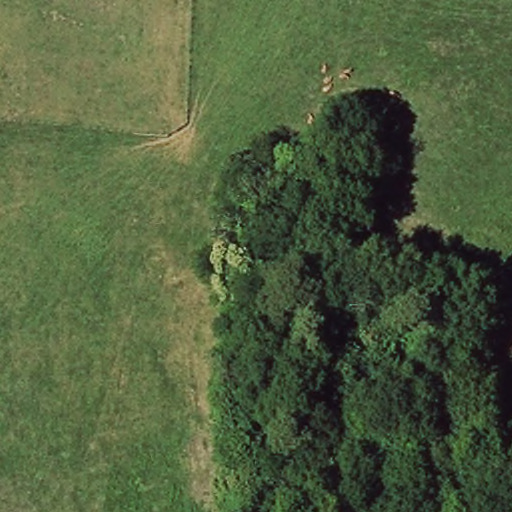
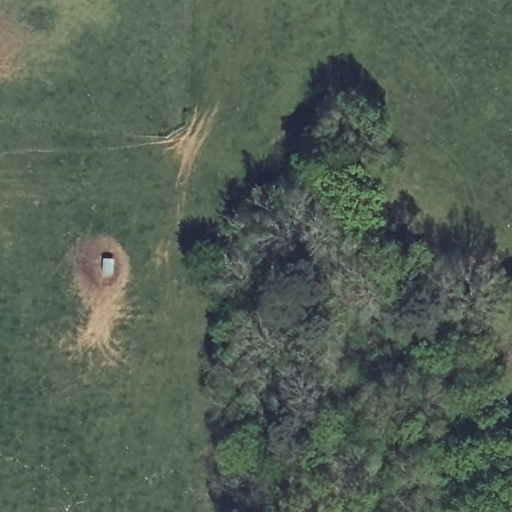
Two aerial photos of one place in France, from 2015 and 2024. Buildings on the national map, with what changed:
[]

